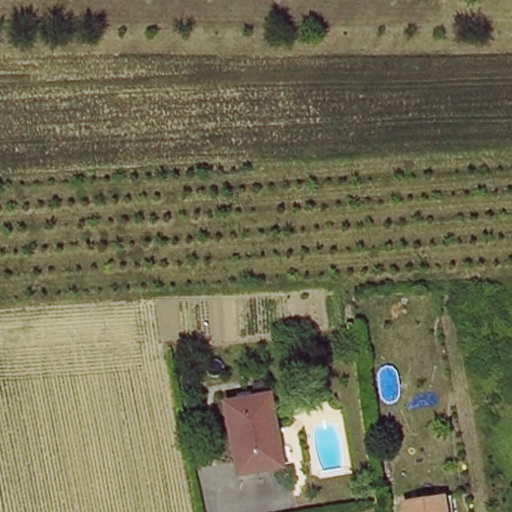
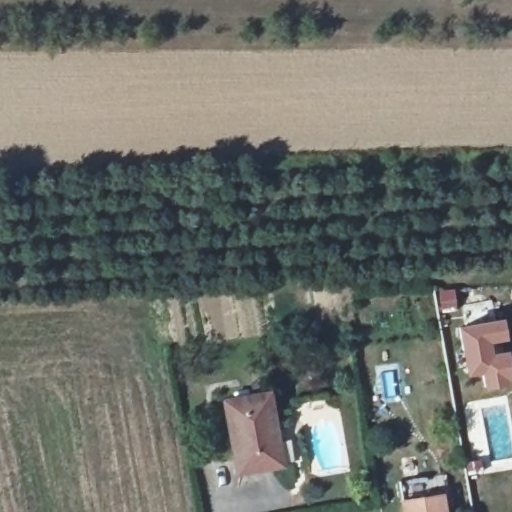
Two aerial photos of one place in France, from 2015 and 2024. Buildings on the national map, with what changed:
new [(502,320),(510,377),(505,378),(507,382),(487,386),(482,370),(469,372),(460,328),(502,320)]
unchanged [(276,459),(235,465),(226,394),(267,390),(276,459)]
unchanged [(435,492),(437,512),(401,512),(399,498),(435,492)]

